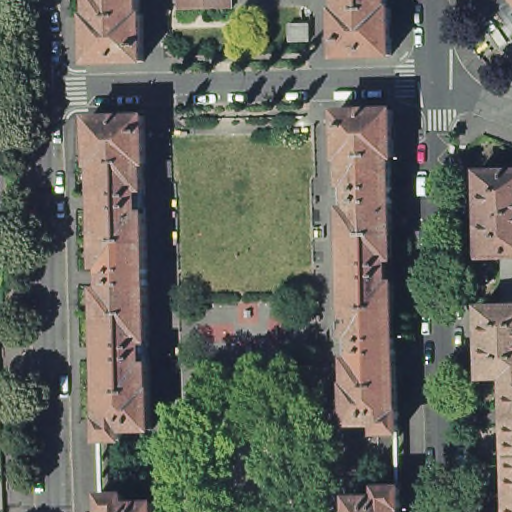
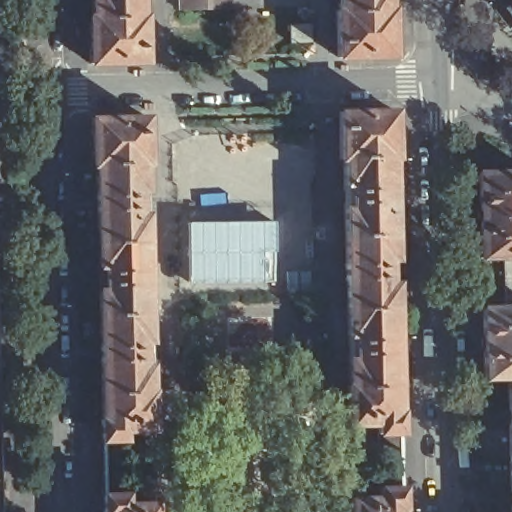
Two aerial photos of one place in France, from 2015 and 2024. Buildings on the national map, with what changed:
unchanged [(135,12),(87,14),(87,0),(135,0),(135,12)]
unchanged [(233,3),(207,4),(180,5),(180,0),(233,0),(233,3)]
unchanged [(383,6),(335,7),(335,0),(383,0),(383,6)]
unchanged [(512,18),(502,5),(509,0),(512,0),(512,18)]
unchanged [(332,7),(335,7),(383,6),(387,6),(388,52),(357,54),(333,54),(333,51),(332,7)]
unchanged [(87,14),(135,12),(139,12),(140,56),(140,59),(85,61),(84,14),(87,14)]
unchanged [(310,24),(311,41),(291,42),(290,24),(310,24)]
unchanged [(390,107),(390,155),(387,155),(338,156),(335,156),(335,112),(335,109),(390,107)]
unchanged [(142,114),(142,117),(143,161),(140,161),(92,162),(88,162),(87,116),(142,114)]
unchanged [(338,156),(387,155),(388,185),(389,185),(389,201),(388,201),(389,229),(340,230),(338,156)]
unchanged [(140,161),(142,235),(93,236),(92,208),(92,192),(92,162),(140,161)]
unchanged [(498,254),(477,254),(475,169),(512,168),(512,370),(503,371),(503,374),(480,375),(478,304),(500,303),(499,287),(499,271),(498,254)]
new [(275,221),(275,284),(187,282),(186,221),(275,221)]
unchanged [(389,229),(390,256),(384,256),(385,280),(390,280),(391,307),(342,308),(342,277),(340,277),(340,261),(342,261),(340,230),(389,229)]
unchanged [(142,235),(142,266),(143,266),(144,282),(143,282),(143,313),(95,315),(95,287),(100,287),(100,263),(94,263),(93,236),(142,235)]
unchanged [(342,308),(391,307),(392,336),(393,351),(392,351),(393,380),(344,381),(342,308)]
unchanged [(143,313),(145,387),(97,387),(96,358),(95,358),(95,343),(95,342),(95,315),(143,313)]
unchanged [(512,454),(505,454),(503,374),(503,371),(512,370),(512,454)]
unchanged [(393,380),(393,409),(395,409),(395,430),(373,430),(373,420),(343,421),(342,382),(344,382),(344,381),(393,380)]
unchanged [(145,387),(147,387),(148,426),(118,427),(118,436),(97,437),(96,416),(97,416),(97,387),(145,387)]
unchanged [(512,454),(512,512),(506,512),(505,454),(512,454)]
unchanged [(375,494),(375,485),(397,484),(397,505),(396,505),(396,512),(346,512),(345,495),(375,494)]
unchanged [(120,500),(150,499),(150,512),(100,512),(98,512),(98,492),(120,491),(120,500)]

